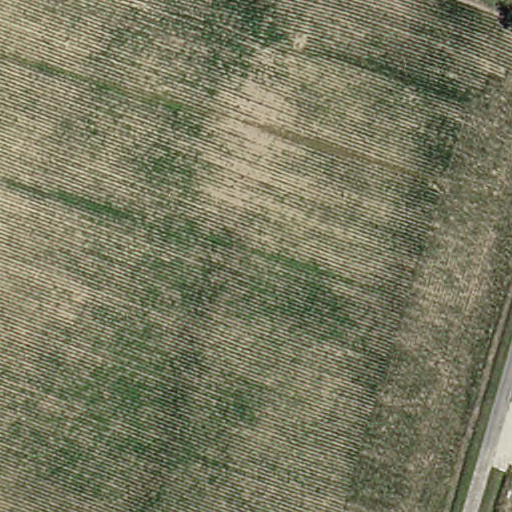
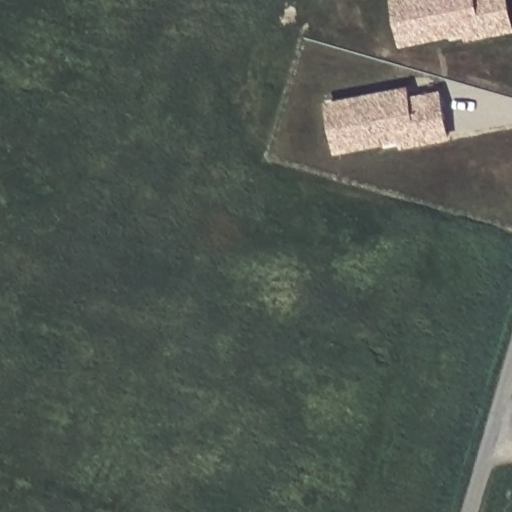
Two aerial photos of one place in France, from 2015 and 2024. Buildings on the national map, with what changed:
new [(468,42),(466,32),(402,46),(393,0),(512,0),(512,32),(468,42)]
new [(413,95),(443,89),(455,137),(405,149),(403,140),(338,154),(328,100),(412,85),(413,95)]

